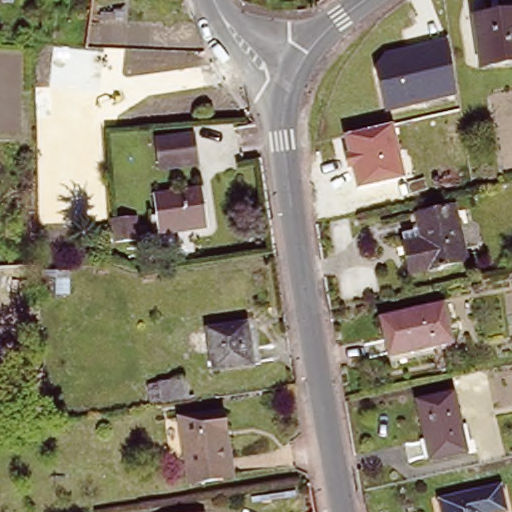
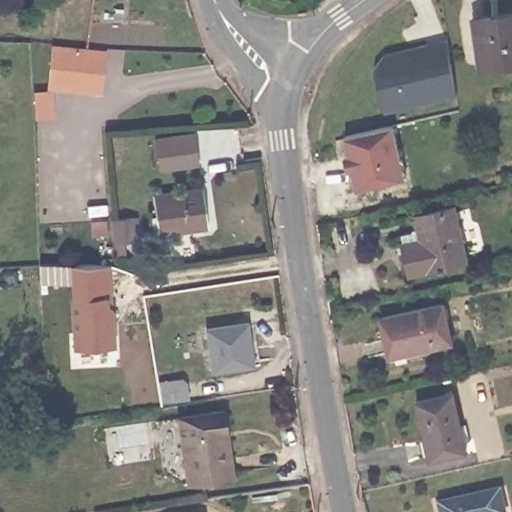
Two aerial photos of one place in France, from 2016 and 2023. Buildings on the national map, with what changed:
unchanged [(475,14),(512,8),(512,58),(482,62),(475,14)]
unchanged [(372,55),(447,40),(456,97),(383,112),(372,55)]
new [(53,90),(55,117),(35,120),(33,91),(47,90),(51,44),(107,49),(103,95),(53,90)]
unchanged [(353,170),(346,172),(343,157),(349,155),(343,136),(392,125),(405,177),(357,190),(353,170)]
unchanged [(193,127),(197,163),(158,166),(155,131),(193,127)]
unchanged [(204,189),(207,229),(157,234),(153,194),(204,189)]
unchanged [(454,207),(465,263),(410,275),(404,241),(402,232),(420,229),(417,215),(454,207)]
new [(118,256),(117,243),(115,243),(113,219),(138,217),(140,242),(138,242),(138,255),(118,256)]
new [(113,295),(108,295),(108,304),(116,310),(118,347),(73,350),(69,297),(71,297),(70,264),(112,265),(113,295)]
unchanged [(380,317),(441,305),(450,346),(389,358),(380,317)]
unchanged [(248,323),(253,363),(212,368),(206,329),(248,323)]
unchanged [(158,380),(180,377),(182,397),(160,400),(158,380)]
unchanged [(415,401),(452,393),(463,451),(426,458),(415,401)]
unchanged [(220,410),(229,476),(185,482),(177,416),(220,410)]
unchanged [(482,510),(482,512),(444,512),(440,495),(498,480),(505,505),(482,510)]
unchanged [(210,512),(191,512),(210,510),(210,512)]

